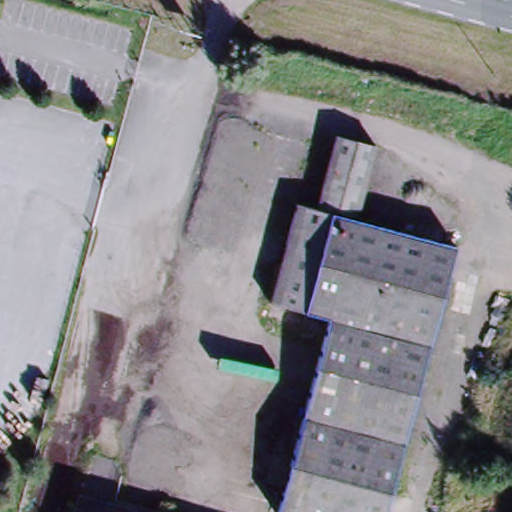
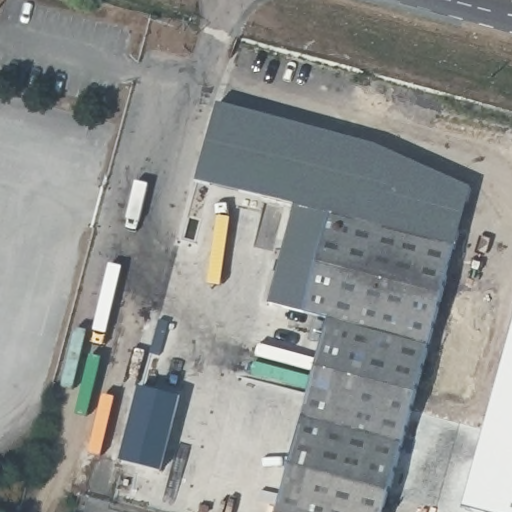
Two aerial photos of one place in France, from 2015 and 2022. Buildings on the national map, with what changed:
new [(335,134),(335,135),(316,210),(296,205),(197,183),(218,103),(335,134)]
unchanged [(385,512),(276,512),(329,320),(269,304),(296,205),(316,210),(335,135),(335,134),(377,146),(356,220),(455,247),(385,512)]
new [(472,188),(455,247),(356,220),(377,146),(472,188)]
new [(512,337),(512,512),(484,512),(465,507),(512,337)]
new [(181,396),(165,471),(122,463),(138,390),(181,396)]

